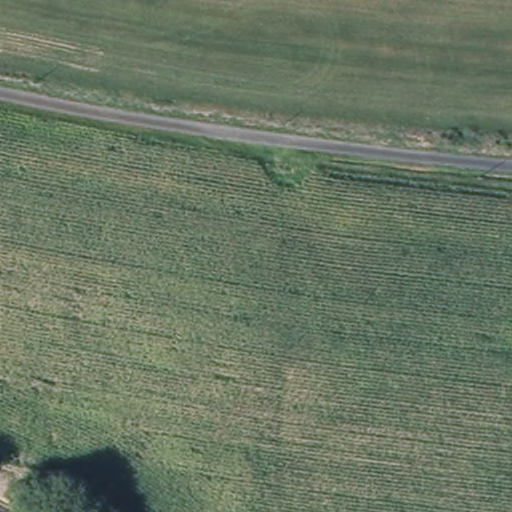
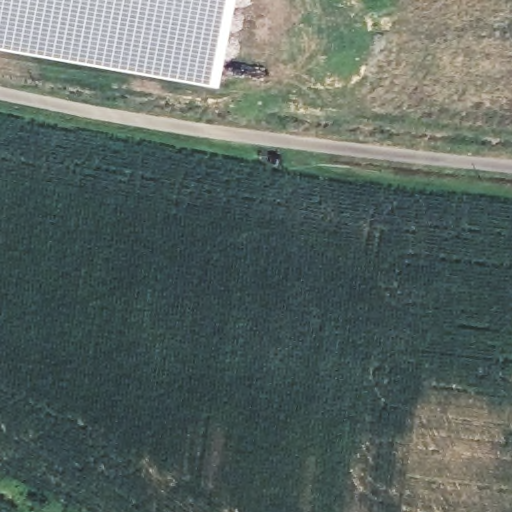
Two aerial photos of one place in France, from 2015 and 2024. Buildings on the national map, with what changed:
new [(0,48),(0,0),(231,0),(215,85),(0,48)]

